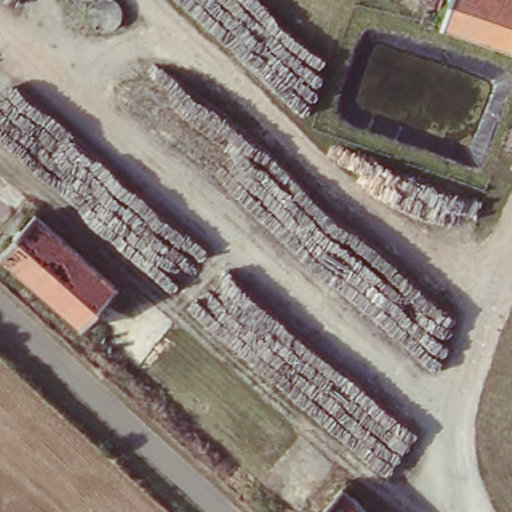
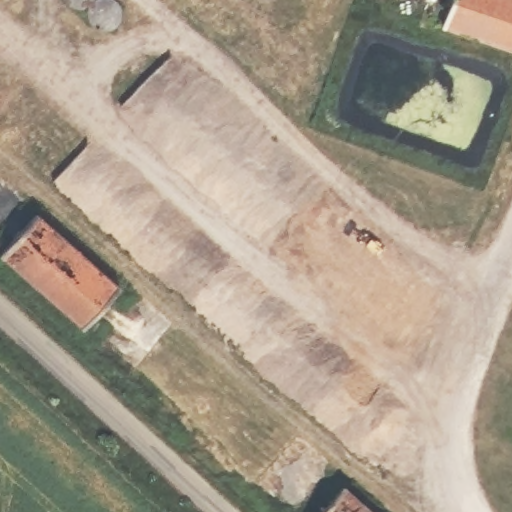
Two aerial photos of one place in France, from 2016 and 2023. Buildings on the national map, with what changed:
unchanged [(512,45),(444,21),(452,0),(512,0),(512,45)]
unchanged [(38,217),(120,290),(83,333),(1,257),(38,217)]
unchanged [(367,512),(325,512),(344,491),(367,512)]

